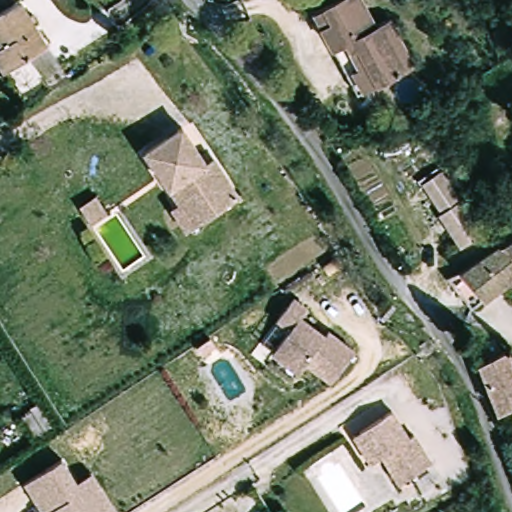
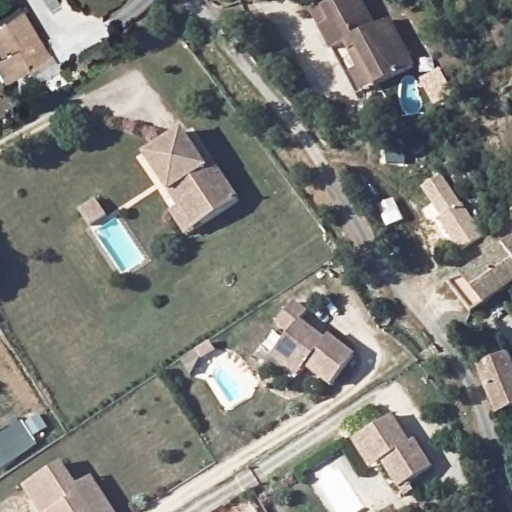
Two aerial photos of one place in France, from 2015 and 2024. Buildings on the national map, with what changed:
unchanged [(423,62),(363,99),(313,19),(342,0),(366,0),(380,22),(393,16),(423,62)]
unchanged [(0,33),(0,13),(25,1),(49,48),(5,69),(0,60),(0,46),(5,44),(0,33)]
unchanged [(181,205),(145,154),(181,126),(208,164),(218,157),(227,170),(242,191),(205,217),(187,231),(172,211),(181,205)]
unchanged [(439,217),(442,215),(423,185),(443,174),(482,238),(460,252),(439,217)]
unchanged [(92,216),(103,233),(86,243),(76,227),(92,216)]
unchanged [(472,308),(449,275),(470,267),(512,241),(512,285),(472,308)]
unchanged [(292,330),(280,318),(299,298),(311,310),(304,317),(322,333),(318,340),(324,343),(332,334),(357,356),(331,385),(306,364),(303,367),(297,373),(272,351),(278,345),(292,330)]
unchanged [(484,365),(512,353),(512,407),(504,410),(484,365)]
unchanged [(411,440),(416,437),(433,467),(409,481),(413,490),(406,494),(383,455),(376,459),(370,462),(354,433),(361,430),(397,412),(411,440)]
new [(0,437),(23,422),(39,447),(0,473),(0,437)]
unchanged [(79,486),(94,477),(114,512),(41,512),(26,485),(65,462),(79,486)]

